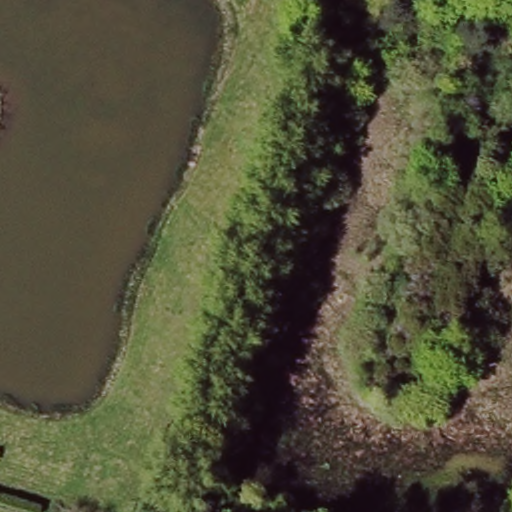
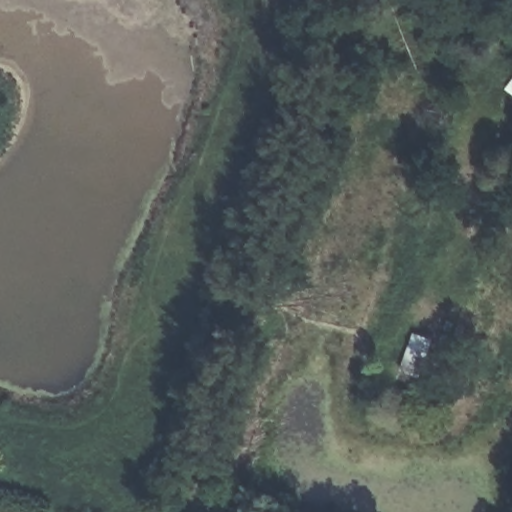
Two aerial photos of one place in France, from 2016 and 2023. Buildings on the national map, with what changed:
unchanged [(403,367),(414,334),(425,340),(416,371),(403,367)]

